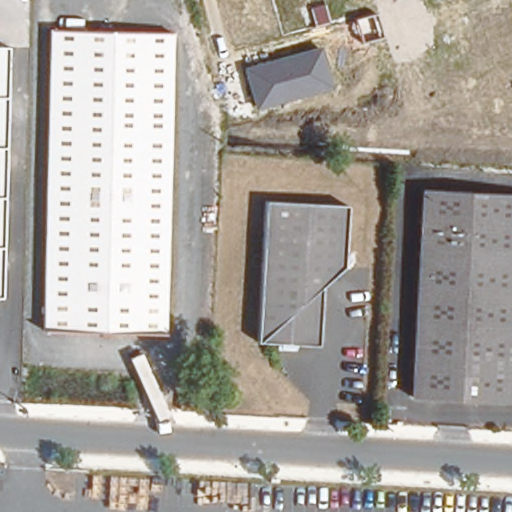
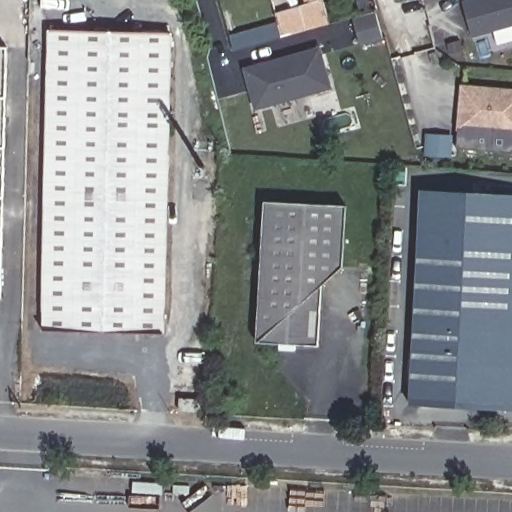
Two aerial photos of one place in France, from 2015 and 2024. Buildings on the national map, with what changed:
new [(229,35),(278,22),(275,12),(307,3),(307,0),(322,0),(328,24),(233,49),(229,35)]
new [(462,1),(465,0),(512,0),(512,25),(471,36),(462,1)]
new [(375,12),(383,36),(361,43),(354,19),(375,12)]
unchanged [(3,310),(0,311),(0,25),(3,310)]
unchanged [(171,34),(166,332),(41,330),(48,30),(171,34)]
unchanged [(332,87),(254,109),(243,67),(321,45),(332,87)]
new [(461,84),(512,88),(512,134),(458,129),(461,84)]
unchanged [(512,267),(508,325),(512,326),(512,398),(412,390),(426,187),(512,193),(512,267)]
unchanged [(346,195),(342,257),(320,276),(317,336),(257,333),(265,191),(346,195)]
unchanged [(512,267),(512,326),(508,325),(512,267)]
unchanged [(206,396),(205,409),(178,408),(179,403),(179,395),(200,396),(206,396)]

